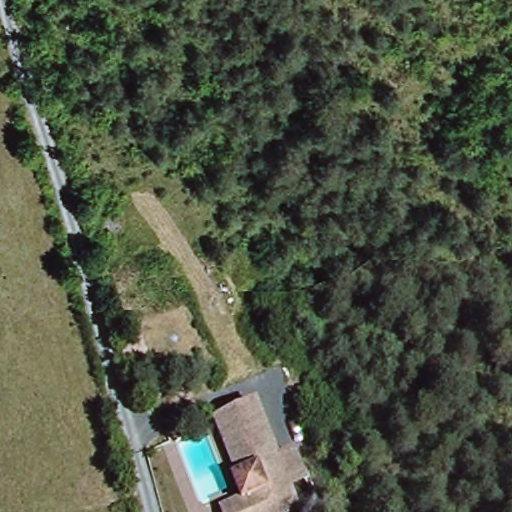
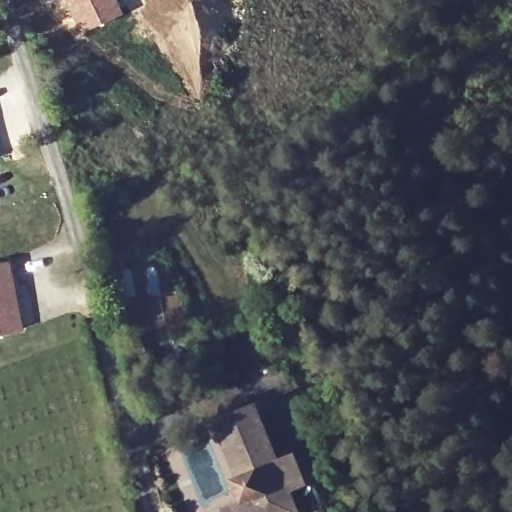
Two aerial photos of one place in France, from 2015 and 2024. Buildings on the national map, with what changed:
new [(78,33),(62,0),(117,0),(123,12),(78,33)]
new [(0,335),(0,264),(10,262),(22,330),(0,335)]
unchanged [(243,503),(234,481),(240,478),(216,420),(254,405),(295,505),(293,512),(222,512),(243,503)]

